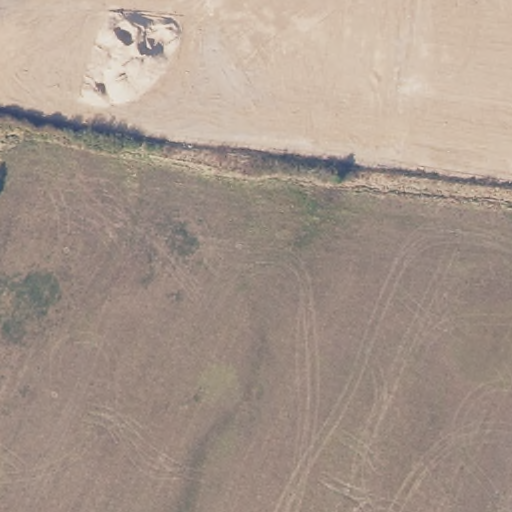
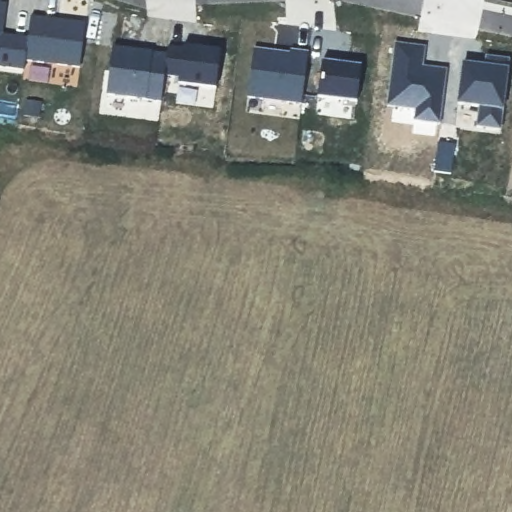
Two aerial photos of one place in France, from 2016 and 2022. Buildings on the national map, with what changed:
new [(0,65),(0,1),(8,1),(4,34),(27,36),(32,16),(86,21),(81,66),(26,60),(24,69),(0,65)]
new [(182,75),(165,74),(163,101),(147,99),(107,95),(113,46),(153,51),(167,53),(168,46),(182,46),(221,50),(217,87),(180,84),(182,75)]
new [(255,47),(292,51),(292,48),(309,50),(304,103),(249,96),(255,47)]
new [(481,106),(457,104),(463,62),(484,64),(485,54),(510,56),(501,129),(477,126),(481,106)]
new [(322,60),(363,65),(359,102),(318,98),(322,60)]

